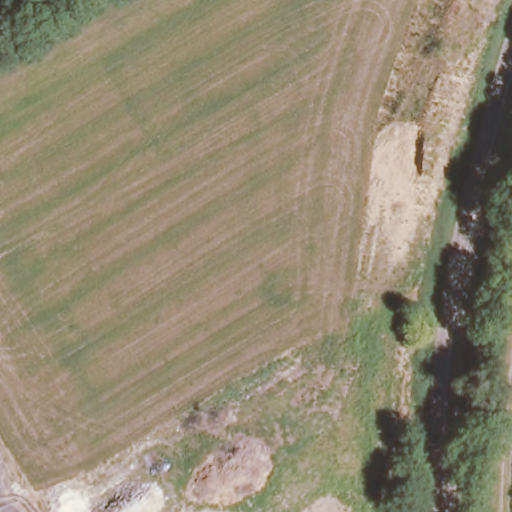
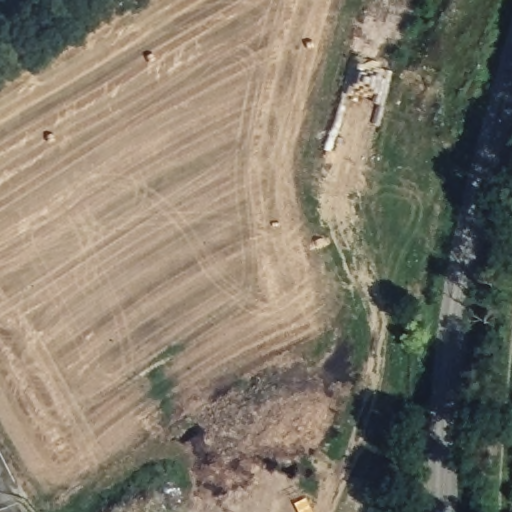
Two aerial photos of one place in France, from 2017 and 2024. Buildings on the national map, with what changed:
[]

